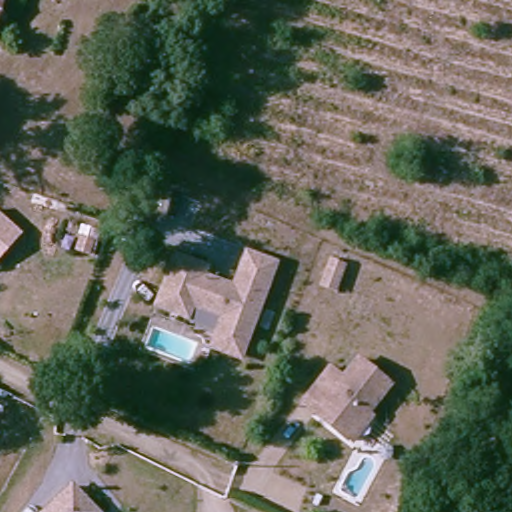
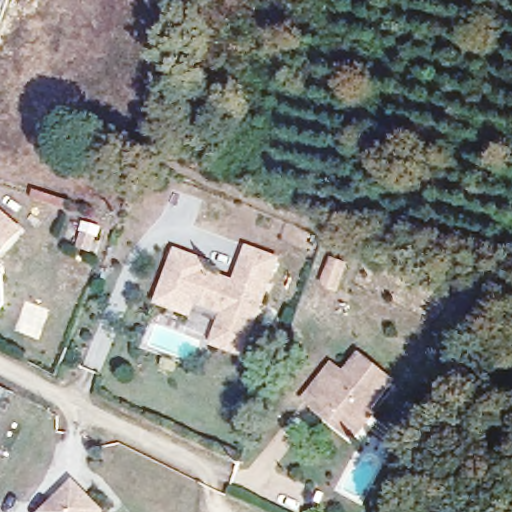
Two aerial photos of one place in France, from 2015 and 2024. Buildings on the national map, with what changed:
unchanged [(3,0),(0,8),(0,0),(3,0)]
unchanged [(16,225),(0,246),(0,213),(16,225)]
unchanged [(219,335),(225,316),(193,306),(190,313),(157,302),(159,295),(174,247),(208,258),(240,270),(249,242),(280,252),(250,345),(248,353),(217,342),(219,335)]
unchanged [(339,286),(324,282),(332,257),(346,261),(339,286)]
unchanged [(359,437),(323,413),(328,407),(314,397),(335,366),(348,376),(363,355),(398,379),(359,437)]
unchanged [(0,403),(0,382),(19,391),(13,410),(0,403)]
unchanged [(71,483),(99,511),(98,512),(43,512),(71,483)]

